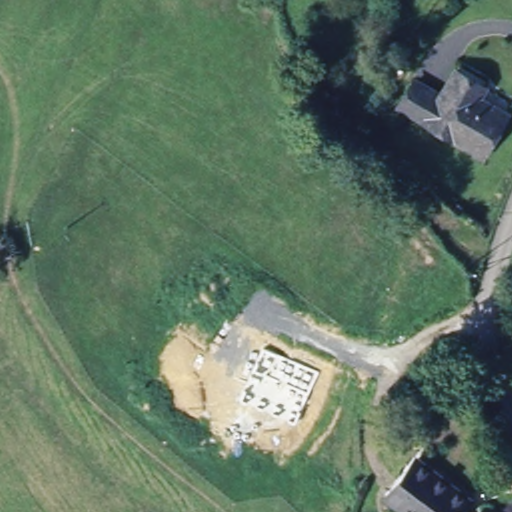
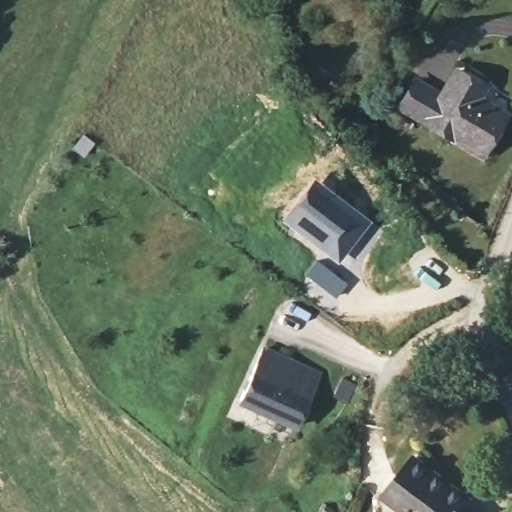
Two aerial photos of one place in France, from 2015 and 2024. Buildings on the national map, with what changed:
unchanged [(503,106),(480,144),(403,104),(416,78),(443,92),(456,70),(484,84),(479,94),(503,106)]
new [(312,176),(371,220),(339,262),(280,218),(312,176)]
new [(314,259),(346,283),(334,299),(302,275),(314,259)]
new [(262,346),(321,374),(296,431),(235,403),(262,346)]
unchanged [(390,501),(419,466),(471,512),(404,512),(390,501)]

